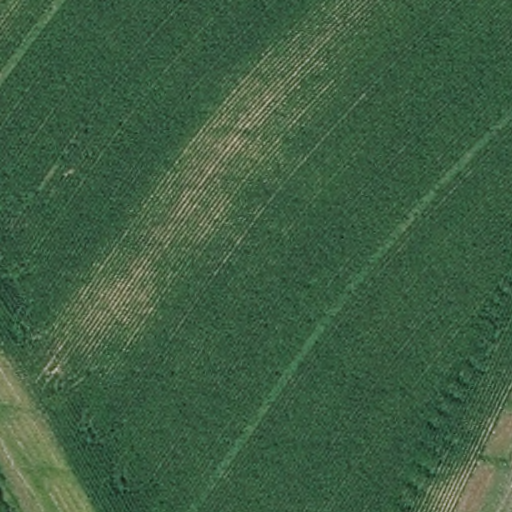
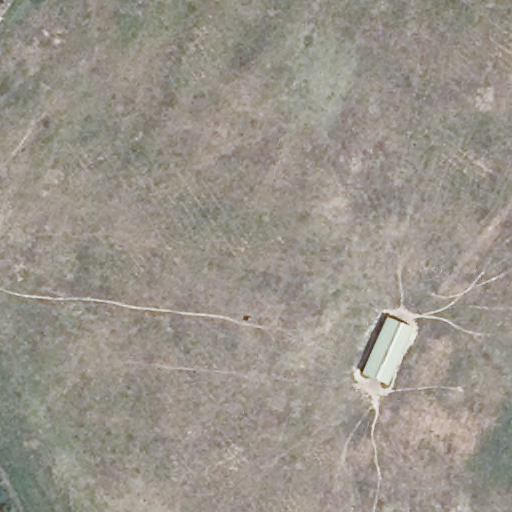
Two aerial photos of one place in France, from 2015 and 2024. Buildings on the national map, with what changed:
new [(386,385),(360,373),(385,316),(411,328),(386,385)]

